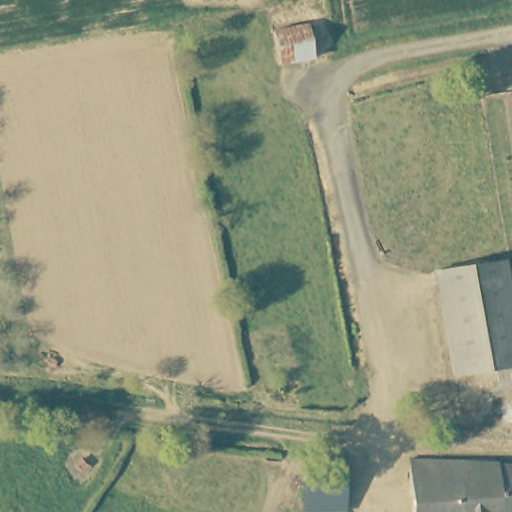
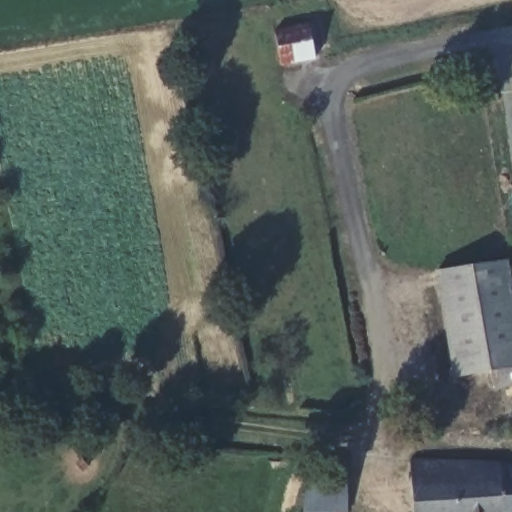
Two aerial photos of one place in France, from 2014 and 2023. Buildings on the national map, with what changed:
unchanged [(314,47),(315,61),(294,65),(279,67),(274,32),(312,27),(314,47)]
unchanged [(503,258),(512,311),(512,379),(496,382),(494,367),(451,373),(430,273),(451,270),(503,258)]
unchanged [(411,461),(473,462),(512,468),(512,512),(414,512),(411,461)]
unchanged [(342,512),(301,512),(302,470),(342,470),(342,512)]

